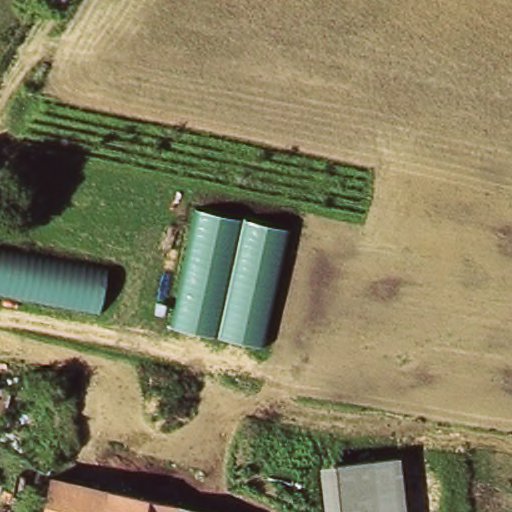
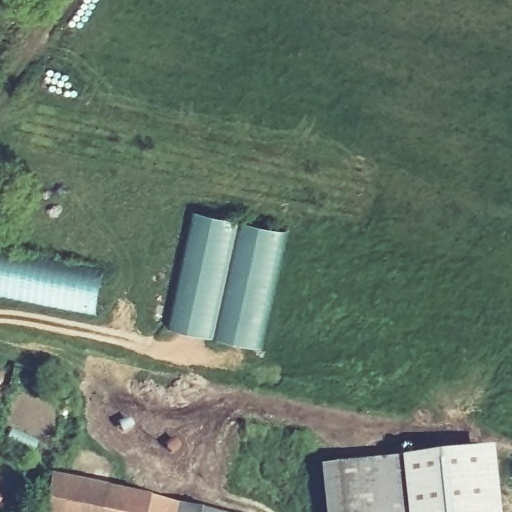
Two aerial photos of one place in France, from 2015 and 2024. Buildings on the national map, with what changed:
unchanged [(287,228),(262,345),(173,328),(196,208),(287,228)]
unchanged [(99,313),(0,295),(0,247),(108,268),(99,313)]
new [(405,457),(492,448),(499,512),(411,512),(405,457)]
unchanged [(322,467),(405,457),(411,512),(327,512),(322,467)]
unchanged [(106,490),(102,512),(47,512),(52,478),(106,490)]
unchanged [(109,491),(140,498),(193,509),(192,512),(102,512),(106,490),(109,491)]
unchanged [(210,512),(192,512),(193,509),(210,512)]

